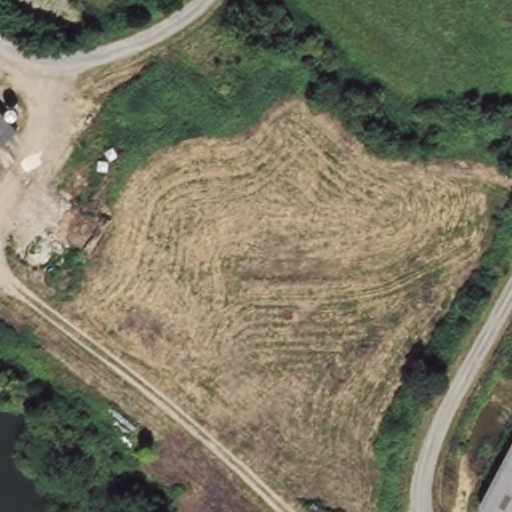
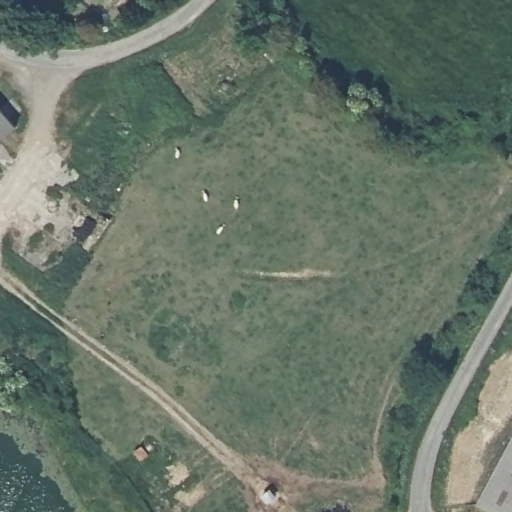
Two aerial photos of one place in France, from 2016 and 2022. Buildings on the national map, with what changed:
unchanged [(19,124),(0,143),(0,102),(19,124)]
unchanged [(512,443),(512,512),(493,512),(480,505),(512,443)]

